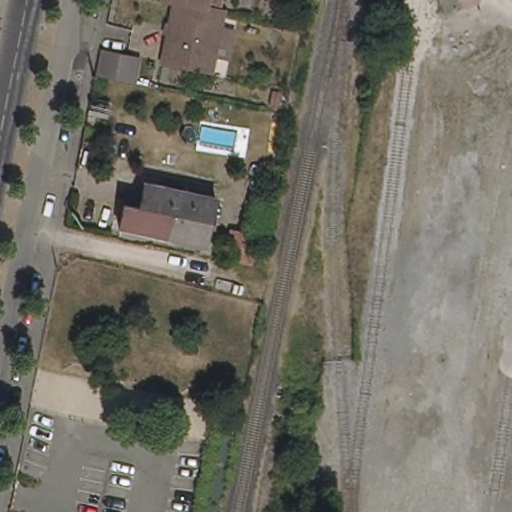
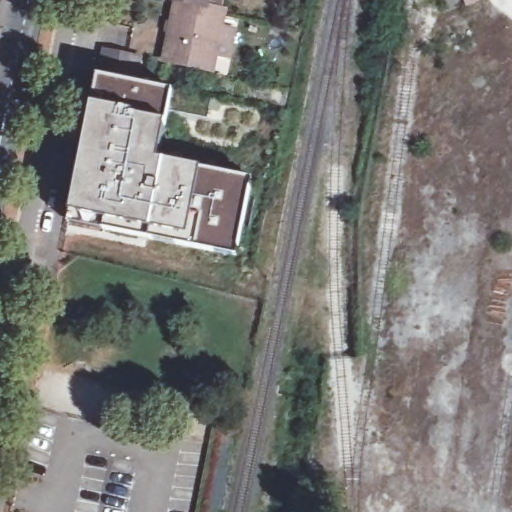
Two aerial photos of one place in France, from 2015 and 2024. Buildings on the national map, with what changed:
unchanged [(181,4),(171,2),(160,0),(205,0),(203,8),(181,4)]
unchanged [(181,4),(203,8),(220,12),(207,73),(158,62),(171,2),(181,4)]
new [(163,123),(157,161),(199,170),(248,181),(233,258),(66,219),(70,212),(93,106),(101,72),(105,49),(138,55),(134,78),(169,87),(163,123)]
demolished [(138,55),(134,78),(101,72),(105,49),(138,55)]
demolished [(218,195),(206,245),(186,240),(169,236),(121,228),(126,203),(141,206),(146,187),(146,182),(218,195)]
demolished [(258,265),(228,260),(234,229),(263,236),(258,265)]

